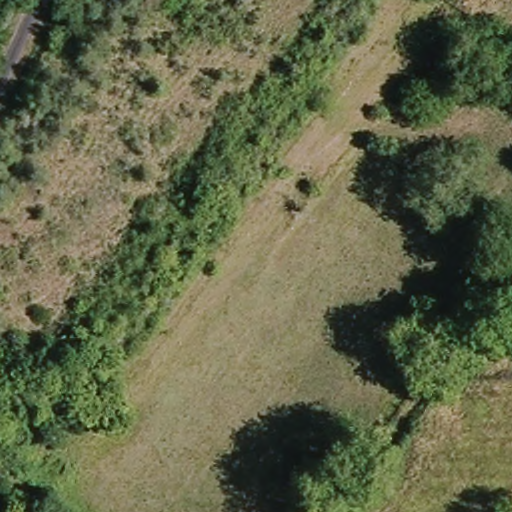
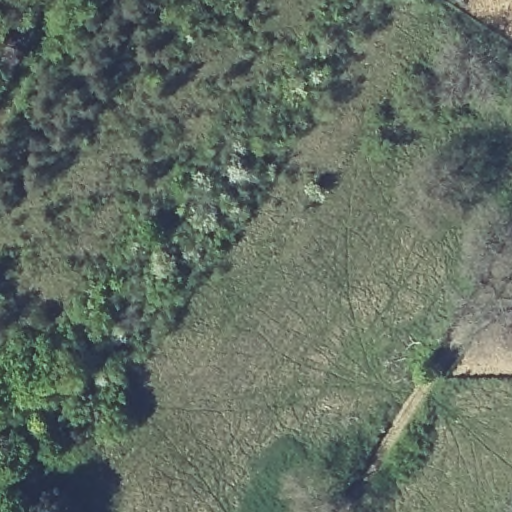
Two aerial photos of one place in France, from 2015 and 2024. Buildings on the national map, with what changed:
unchanged [(464,0),(463,2),(459,0),(464,0)]

